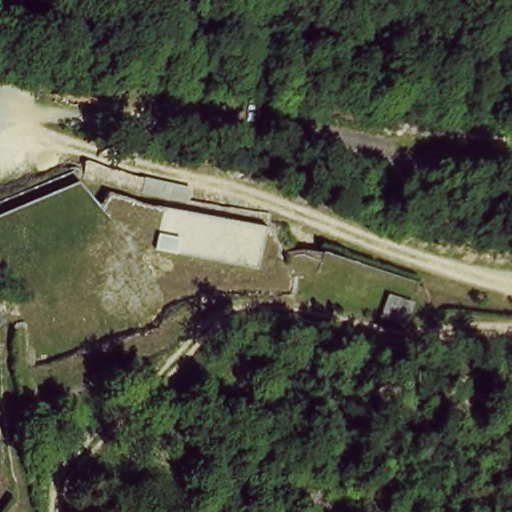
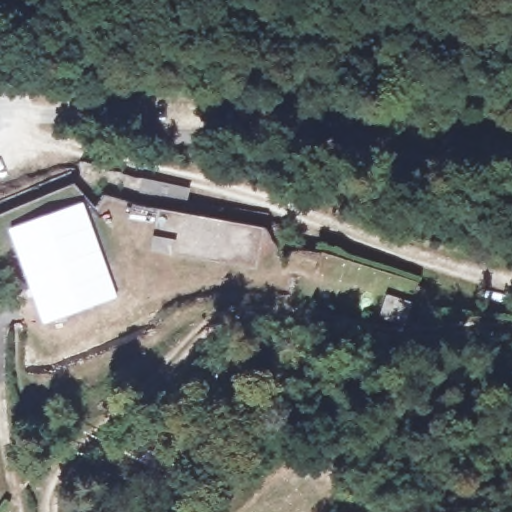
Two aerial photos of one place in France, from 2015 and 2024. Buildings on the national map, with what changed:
unchanged [(50,97),(54,80),(116,95),(111,113),(50,97)]
new [(83,200),(118,297),(41,325),(7,227),(83,200)]
unchanged [(429,287),(420,328),(309,295),(322,258),(429,287)]

